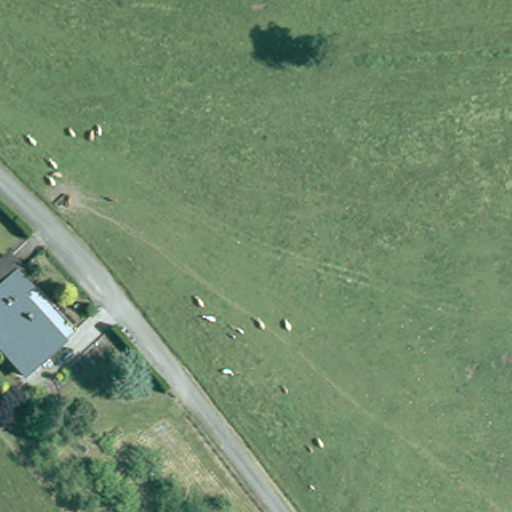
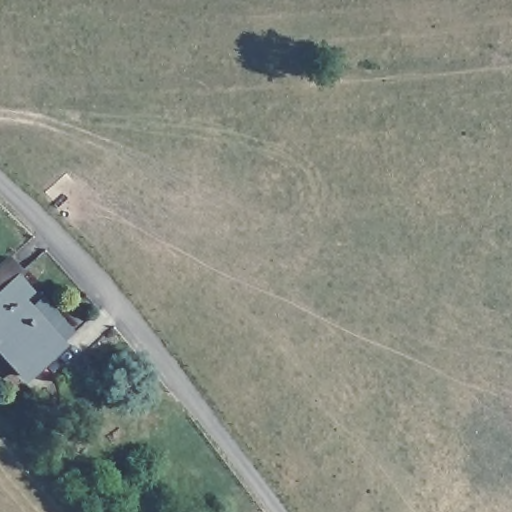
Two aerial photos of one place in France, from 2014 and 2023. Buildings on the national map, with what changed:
unchanged [(14,276),(0,289),(0,262),(5,258),(18,272),(14,276)]
unchanged [(25,289),(18,297),(52,334),(37,349),(44,357),(22,377),(0,352),(0,289),(14,276),(25,289)]

